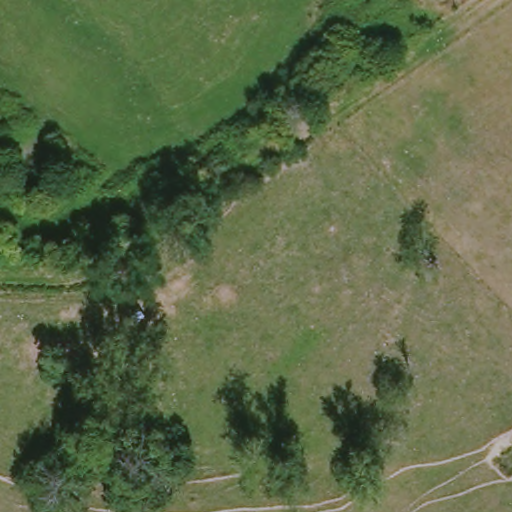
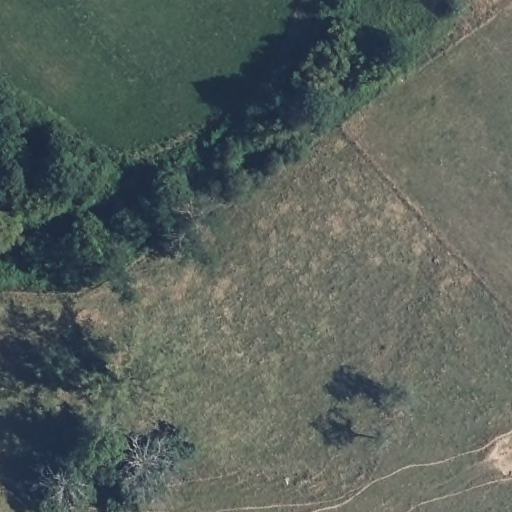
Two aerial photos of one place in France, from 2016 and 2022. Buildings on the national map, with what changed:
[]

